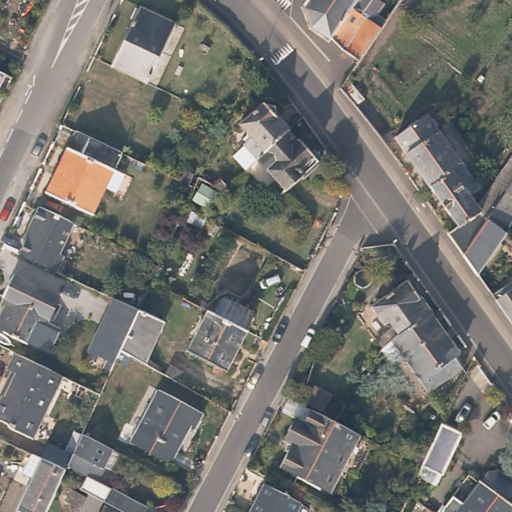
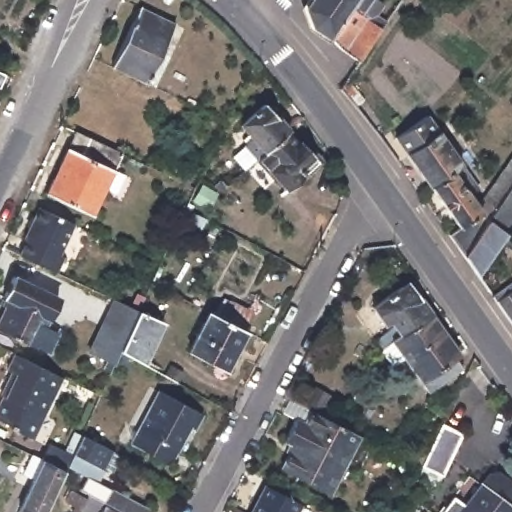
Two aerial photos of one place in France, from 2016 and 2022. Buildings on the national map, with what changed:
unchanged [(325,34),(309,23),(305,5),(309,0),(354,0),(329,38),(325,34)]
unchanged [(382,20),(377,28),(357,60),(341,50),(329,38),(354,0),(381,0),(373,13),(382,20)]
unchanged [(175,27),(147,88),(112,71),(140,10),(175,27)]
unchanged [(253,131),(246,124),(269,103),(271,104),(281,106),(281,115),(294,130),(264,158),(257,164),(244,149),(251,142),(247,137),(253,131)]
unchanged [(397,146),(414,133),(427,123),(464,171),(436,191),(433,194),(397,146)]
unchanged [(308,173),(292,188),(264,158),(294,130),(303,140),(305,139),(317,153),(323,159),(308,173)]
unchanged [(118,163),(89,224),(43,203),(73,141),(118,163)]
unchanged [(436,191),(464,171),(478,190),(483,197),(475,202),(484,214),(492,197),(511,166),(512,164),(512,232),(504,227),(501,232),(505,234),(477,278),(468,264),(452,243),(462,233),(433,194),(436,191)]
unchanged [(238,180),(234,184),(223,182),(232,174),(238,180)]
unchanged [(70,224),(55,255),(59,258),(53,270),(17,254),(23,241),(21,240),(35,211),(36,208),(70,224)]
unchanged [(64,297),(41,347),(0,327),(0,326),(14,295),(8,292),(17,274),(64,297)]
unchanged [(384,349),(384,350),(378,343),(394,330),(388,323),(384,325),(372,309),(410,283),(433,315),(384,349)]
unchanged [(512,283),(512,328),(490,298),(512,283)]
unchanged [(116,362),(111,373),(106,371),(110,364),(90,354),(114,301),(139,313),(164,324),(144,364),(132,358),(128,367),(116,362)]
unchanged [(223,308),(229,310),(230,309),(251,321),(242,337),(244,338),(223,378),(189,361),(209,319),(215,323),(223,308)]
unchanged [(460,354),(454,357),(463,369),(428,394),(404,361),(393,369),(382,353),(384,350),(384,349),(433,315),(460,354)]
unchanged [(65,376),(35,439),(11,427),(12,424),(0,417),(0,408),(8,392),(6,389),(14,373),(10,370),(19,354),(65,376)]
unchanged [(107,387),(82,374),(85,368),(85,367),(111,378),(110,379),(107,387)]
unchanged [(201,413),(193,428),(188,426),(168,463),(130,444),(158,391),(201,413)]
unchanged [(332,421),(360,437),(331,493),(290,473),(302,449),(292,445),(304,423),(313,427),(320,414),(332,421)]
unchanged [(467,434),(445,478),(426,469),(447,424),(467,434)]
unchanged [(18,511),(32,481),(22,475),(31,457),(40,461),(48,444),(70,455),(80,435),(102,447),(86,479),(64,468),(62,472),(58,481),(44,512),(20,512),(18,511)]
unchanged [(512,512),(443,512),(442,512),(460,489),(470,496),(485,476),(488,478),(495,468),(504,468),(512,473),(512,512)]
unchanged [(267,485),(302,504),(298,512),(254,512),(267,485)]
unchanged [(150,512),(114,512),(110,510),(117,496),(150,512)]
unchanged [(92,506),(94,502),(109,509),(108,512),(78,512),(72,509),(77,498),(92,506)]

